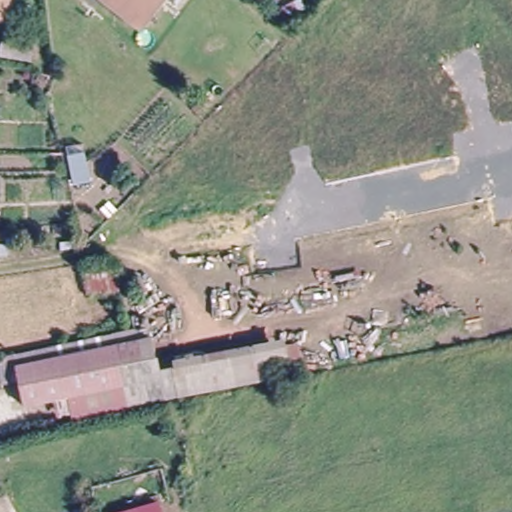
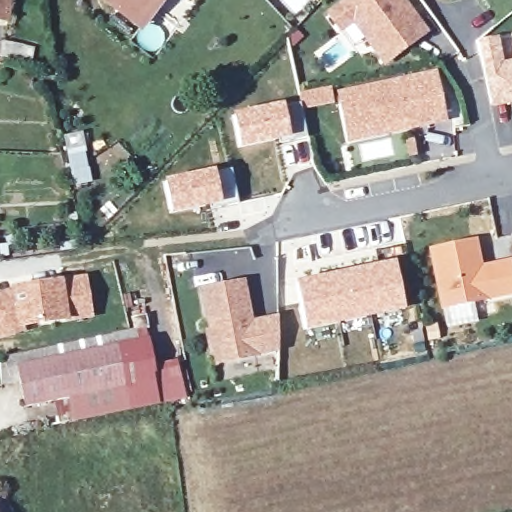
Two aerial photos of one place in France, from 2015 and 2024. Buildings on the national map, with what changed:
unchanged [(0,22),(0,0),(11,0),(8,23),(0,22)]
unchanged [(108,0),(161,0),(141,25),(108,0)]
new [(405,0),(429,32),(385,66),(354,23),(342,33),(327,13),(345,0),(405,0)]
unchanged [(31,61),(0,56),(0,48),(1,42),(33,48),(31,61)]
new [(512,59),(512,100),(491,104),(482,65),(512,59)]
new [(435,69),(446,118),(409,129),(407,120),(384,125),(385,133),(346,141),(337,90),(435,69)]
new [(285,106),(301,103),(299,92),(331,86),(335,103),(303,110),(308,136),(281,142),(280,139),(241,149),(232,114),(284,102),(285,106)]
new [(82,129),(92,180),(74,184),(63,134),(82,129)]
new [(232,166),(240,201),(172,213),(164,179),(232,166)]
new [(445,324),(442,307),(428,248),(476,237),(482,263),(511,259),(512,267),(512,293),(468,302),(471,319),(445,324)]
unchanged [(12,256),(0,257),(0,245),(11,243),(12,256)]
new [(396,260),(406,308),(306,329),(296,281),(396,260)]
demolished [(118,271),(119,291),(96,294),(96,292),(79,291),(78,275),(118,271)]
new [(87,274),(94,317),(24,329),(25,331),(0,337),(0,291),(36,282),(87,274)]
new [(253,321),(277,316),(277,353),(215,363),(213,355),(209,357),(205,330),(208,330),(199,288),(244,280),(253,321)]
demolished [(172,301),(177,336),(153,340),(152,333),(155,302),(172,301)]
unchanged [(58,404),(25,411),(15,360),(131,336),(137,335),(139,340),(154,402),(154,407),(148,409),(81,425),(80,423),(76,424),(75,417),(61,419),(58,404)]
new [(151,338),(157,364),(176,360),(184,396),(165,400),(154,402),(139,340),(151,338)]
unchanged [(169,492),(173,512),(112,512),(169,492)]

